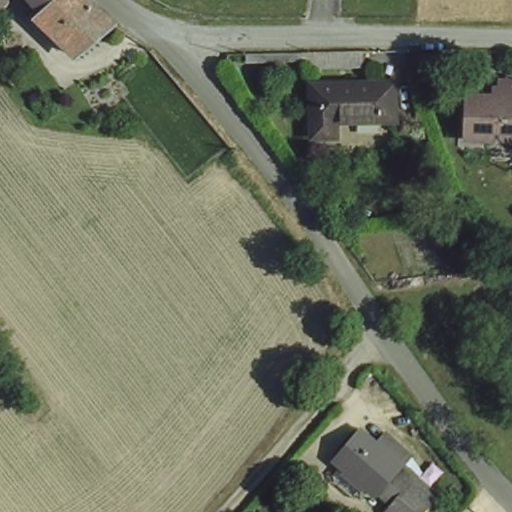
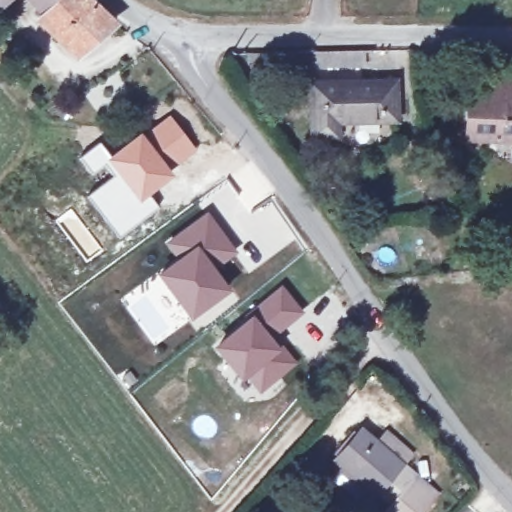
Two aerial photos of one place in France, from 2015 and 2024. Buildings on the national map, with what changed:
unchanged [(76,53),(37,16),(47,5),(41,0),(89,0),(110,19),(76,53)]
unchanged [(374,74),(319,73),(319,54),(373,54),(374,74)]
unchanged [(393,120),(340,122),(338,135),(318,134),(317,86),(394,86),(393,120)]
unchanged [(512,146),(465,145),(465,103),(497,103),(497,86),(512,87),(512,146)]
new [(169,113),(197,149),(172,169),(144,131),(169,113)]
new [(99,140),(111,155),(142,129),(144,131),(172,169),(174,172),(148,194),(139,200),(113,172),(104,164),(92,175),(77,159),(99,140)]
new [(113,172),(139,200),(148,194),(159,208),(120,239),(86,195),(113,172)]
new [(175,258),(164,243),(207,210),(238,250),(216,269),(230,288),(189,318),(156,275),(175,258)]
new [(282,283),(304,310),(275,337),(251,312),(282,283)]
new [(251,312),(275,337),(296,360),(259,393),(244,377),(240,380),(212,348),(251,312)]
unchanged [(442,487),(419,512),(395,512),(392,497),(342,454),(369,422),(442,487)]

